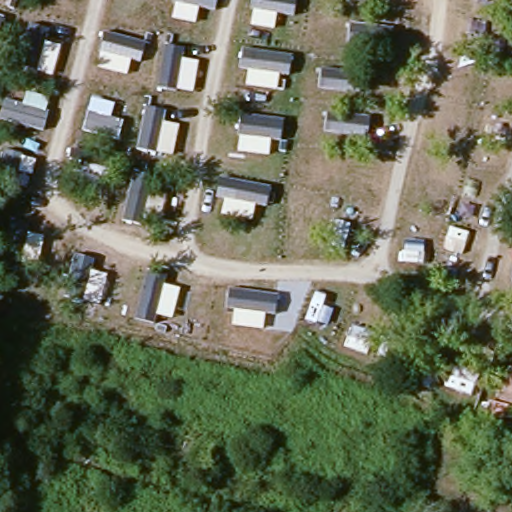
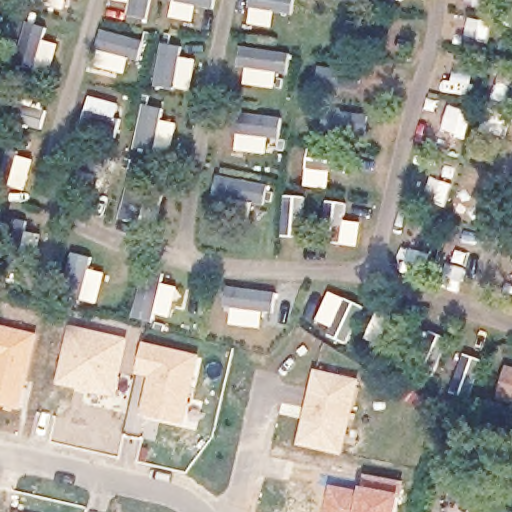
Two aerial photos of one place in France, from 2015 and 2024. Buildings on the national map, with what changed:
new [(20,410),(0,406),(0,325),(38,334),(20,410)]
new [(70,325),(130,339),(117,397),(56,384),(70,325)]
new [(142,342),(200,356),(184,426),(140,416),(148,376),(136,374),(142,342)]
new [(314,369),(359,379),(342,455),(297,445),(314,369)]
unchanged [(503,398),(510,370),(512,371),(512,401),(503,398)]
new [(361,490),(363,474),(404,482),(399,512),(358,512),(361,490)]
new [(331,485),(361,490),(358,512),(326,512),(331,485)]

